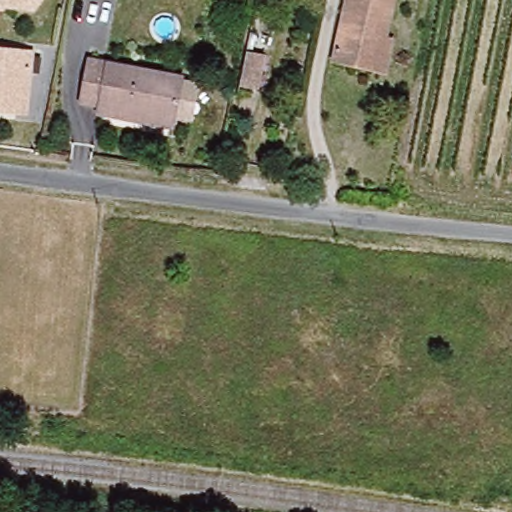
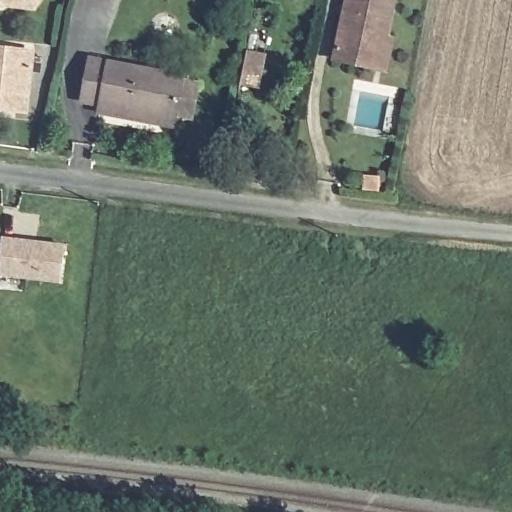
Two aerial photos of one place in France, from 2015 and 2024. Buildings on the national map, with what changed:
unchanged [(43,0),(33,14),(4,10),(3,14),(0,13),(0,0),(43,0)]
unchanged [(371,68),(333,60),(346,0),(393,0),(388,24),(385,37),(392,39),(385,71),(371,68)]
unchanged [(0,109),(0,49),(31,53),(30,70),(28,83),(25,112),(15,111),(0,109)]
unchanged [(246,52),(263,56),(257,86),(239,83),(246,52)]
unchanged [(108,117),(109,110),(110,109),(91,105),(99,63),(171,78),(163,121),(144,116),(143,124),(108,117)]
new [(3,241),(66,249),(62,284),(0,276),(0,267),(3,241)]

